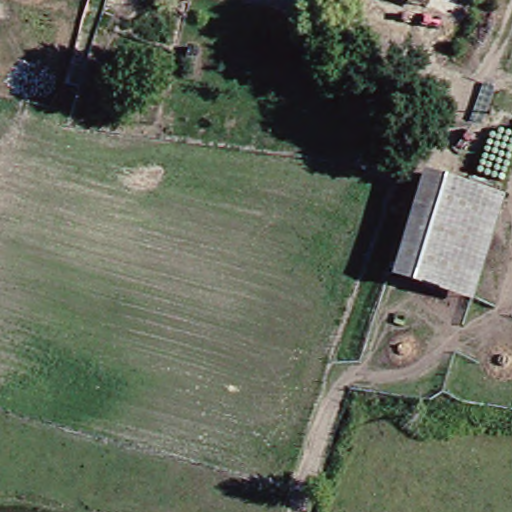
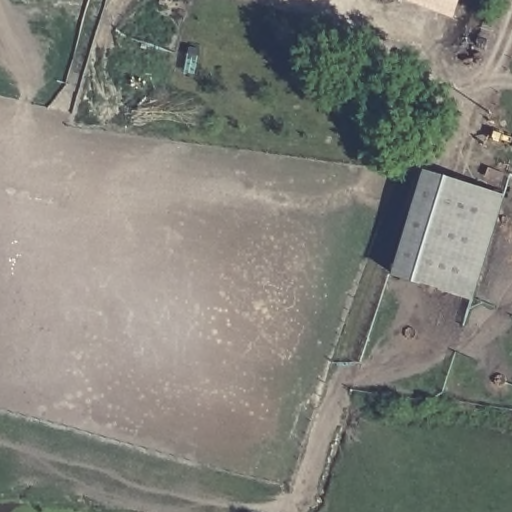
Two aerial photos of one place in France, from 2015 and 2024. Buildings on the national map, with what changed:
unchanged [(403,0),(422,0),(421,7),(403,0)]
unchanged [(471,299),(393,277),(420,176),(499,197),(471,299)]

